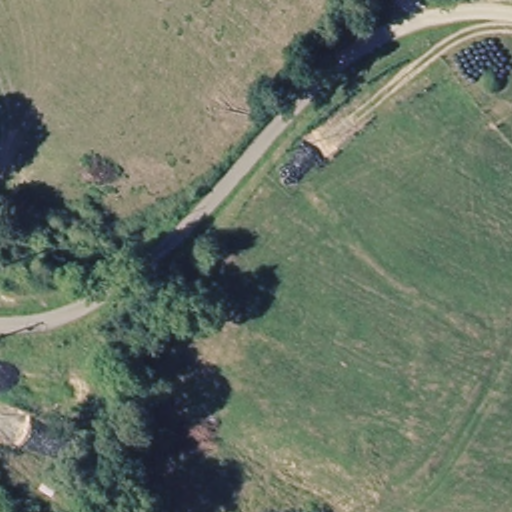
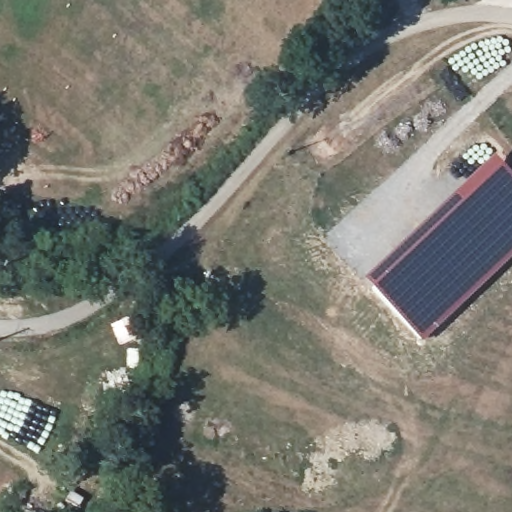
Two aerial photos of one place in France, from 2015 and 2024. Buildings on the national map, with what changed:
new [(389,256),(495,154),(512,172),(512,257),(421,344),(362,281),(389,256)]

